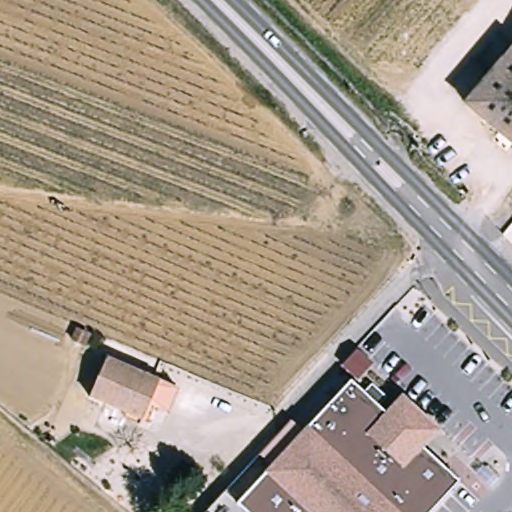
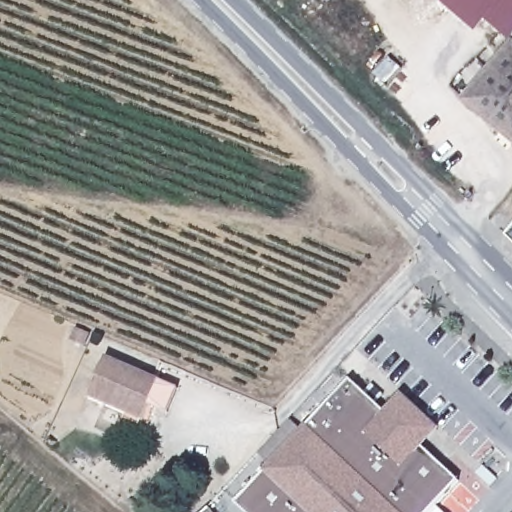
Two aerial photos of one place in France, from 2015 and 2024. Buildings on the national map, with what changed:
new [(487,23),(477,35),(437,0),(512,0),(512,43),(487,23)]
unchanged [(468,100),(512,49),(512,139),(474,106),(469,112),(462,107),(468,100)]
unchanged [(168,413),(150,405),(144,418),(91,396),(107,358),(160,381),(178,388),(168,413)]
unchanged [(258,485),(353,381),(388,413),(391,409),(413,408),(429,423),(429,443),(425,447),(462,479),(432,512),(245,512),(239,506),(258,485)]

